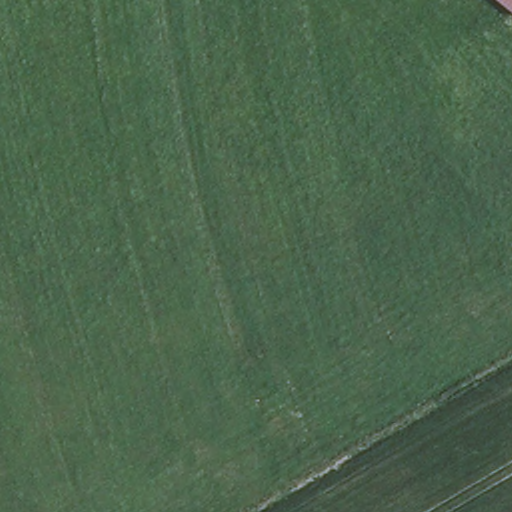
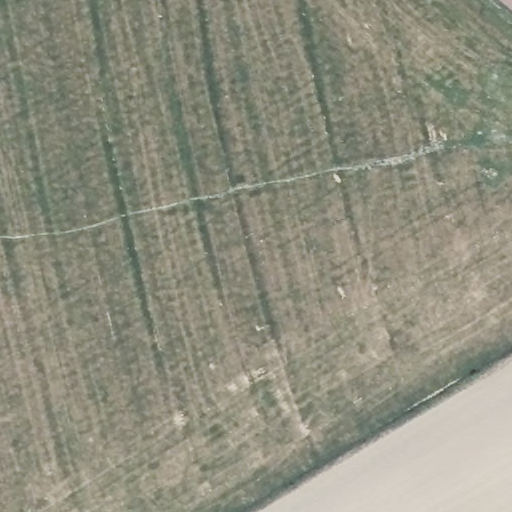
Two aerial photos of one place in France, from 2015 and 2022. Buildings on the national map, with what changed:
unchanged [(512,0),(512,4),(507,0),(512,0)]

